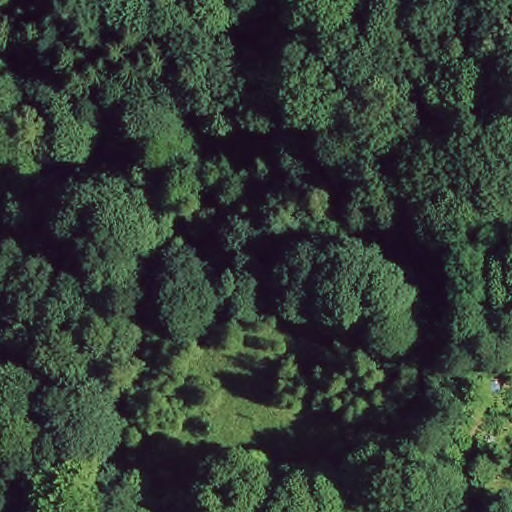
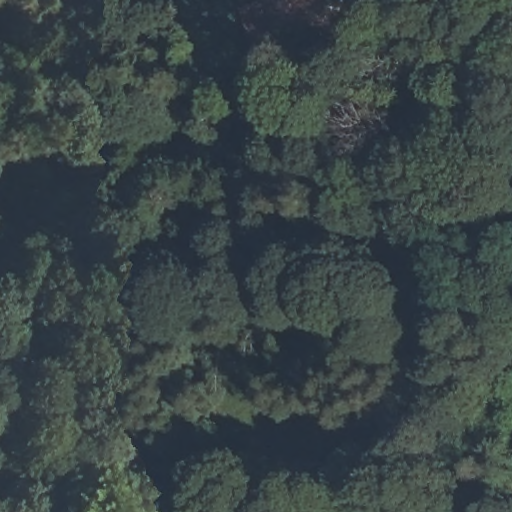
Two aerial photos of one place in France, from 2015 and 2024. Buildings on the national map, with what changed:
unchanged [(261,1),(260,0),(301,0),(308,23),(301,26),(257,41),(245,6),(261,1)]

